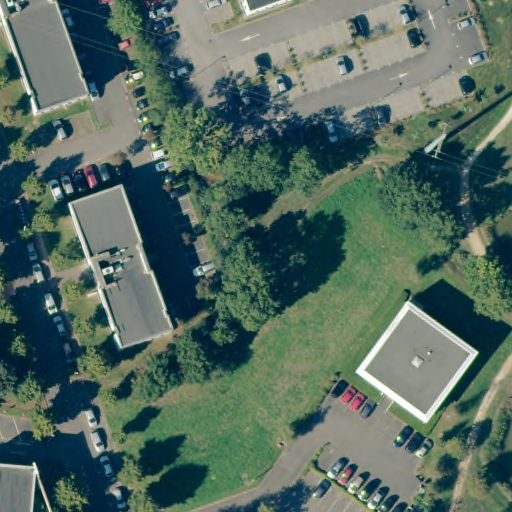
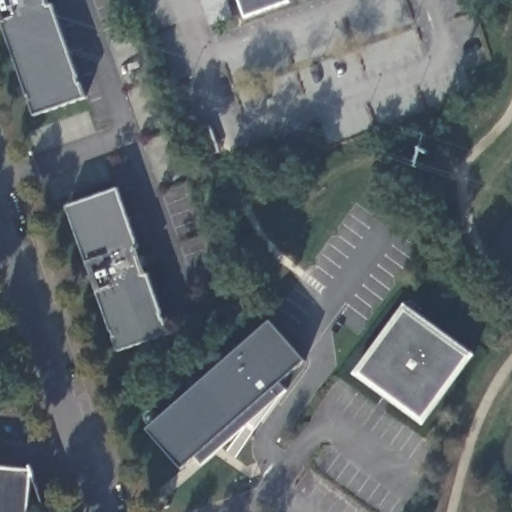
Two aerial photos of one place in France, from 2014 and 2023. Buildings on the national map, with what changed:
unchanged [(48,4),(83,96),(30,116),(0,35),(0,0),(43,0),(45,5),(48,4)]
unchanged [(285,0),(287,3),(244,19),(238,0),(285,0)]
unchanged [(119,189),(139,246),(136,247),(146,276),(149,274),(170,334),(119,352),(98,293),(100,292),(90,265),(88,266),(67,207),(119,189)]
unchanged [(469,359),(460,360),(417,419),(358,376),(402,317),(399,308),(469,359)]
new [(270,321),(304,362),(279,381),(287,392),(204,463),(198,455),(180,468),(148,430),(270,321)]
unchanged [(0,466),(29,468),(27,512),(0,512),(0,466)]

